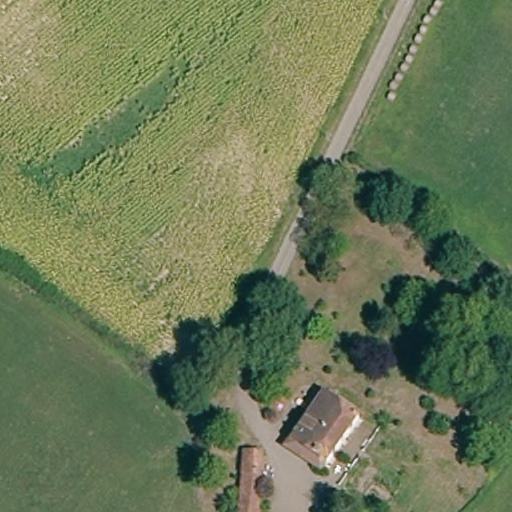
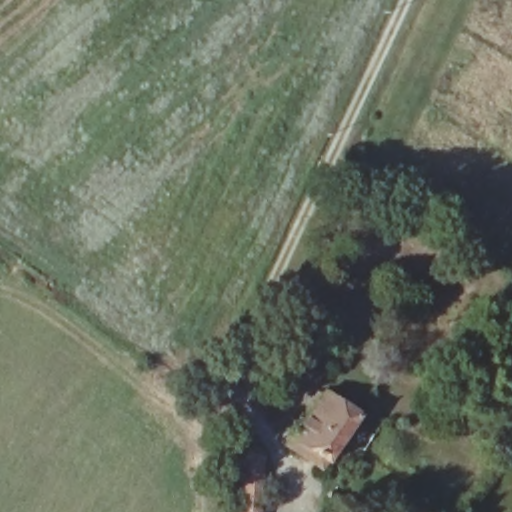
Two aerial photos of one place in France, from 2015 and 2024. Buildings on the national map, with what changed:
unchanged [(312,450),(305,460),(288,448),(301,431),(331,390),(358,411),(324,459),(312,450)]
unchanged [(244,446),(261,447),(258,512),(240,512),(244,446)]

